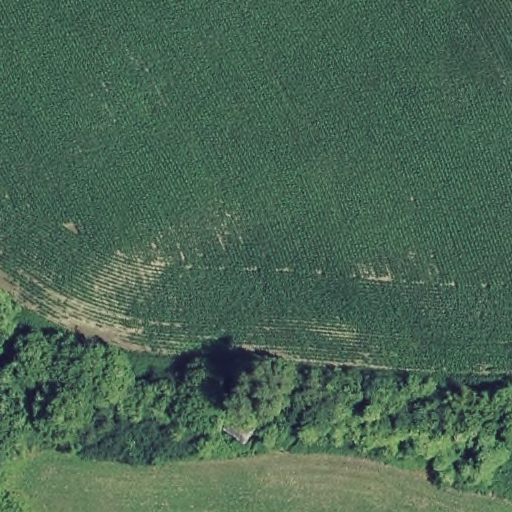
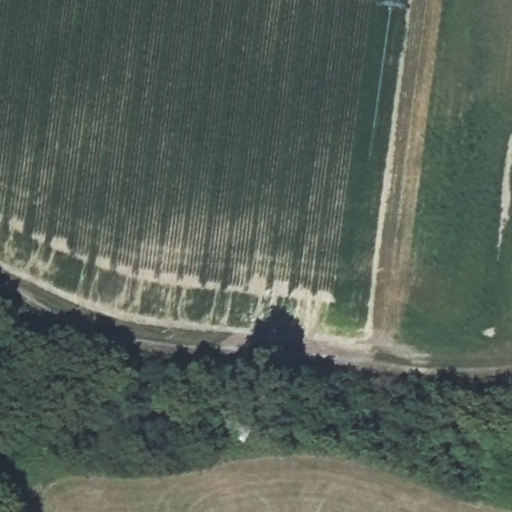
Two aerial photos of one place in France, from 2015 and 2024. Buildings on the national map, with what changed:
unchanged [(231,406),(258,420),(244,445),(219,431),(231,406)]

